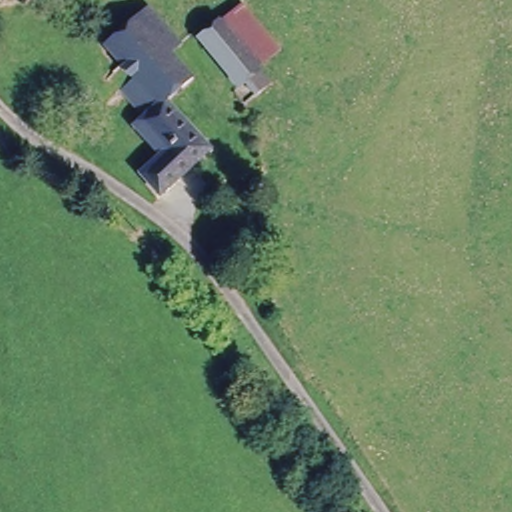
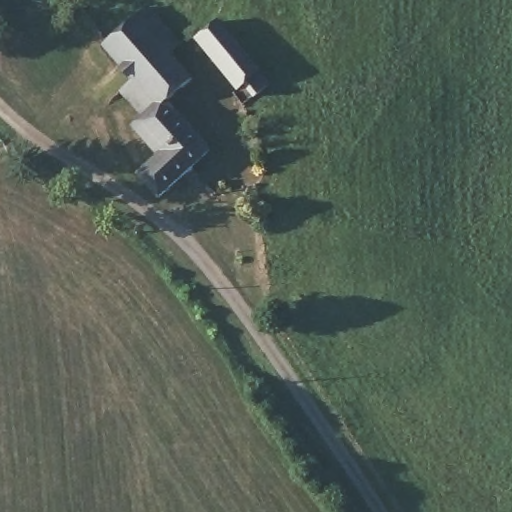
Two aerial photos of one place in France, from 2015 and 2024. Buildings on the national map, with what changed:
unchanged [(184,42),(173,54),(196,75),(169,98),(212,140),(194,158),(159,186),(138,166),(164,143),(135,115),(144,109),(119,87),(131,76),(100,45),(107,38),(146,5),(163,21),(184,42)]
unchanged [(274,46),(254,63),(268,84),(250,102),(237,89),(192,40),(224,14),(239,6),(274,46)]

